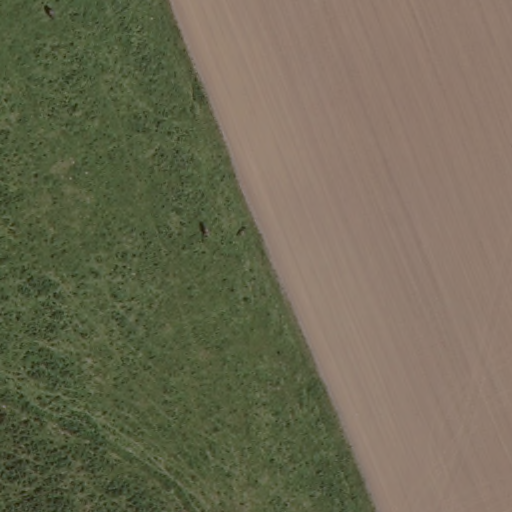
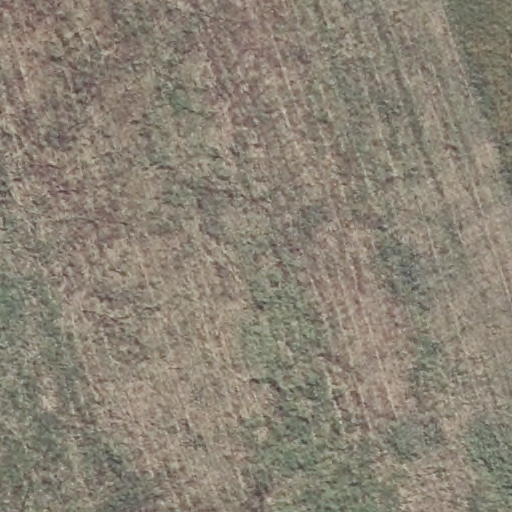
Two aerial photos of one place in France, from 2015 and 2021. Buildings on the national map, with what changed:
[]

